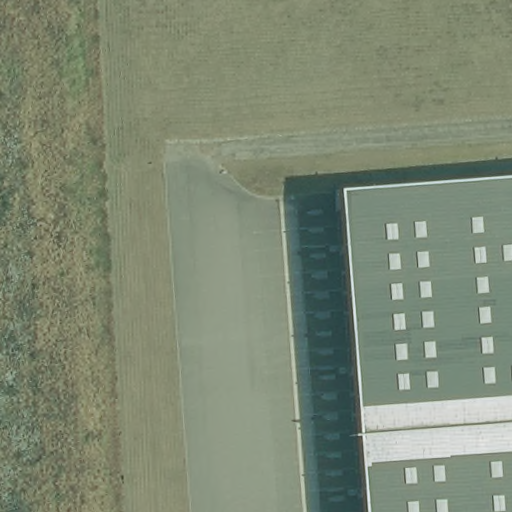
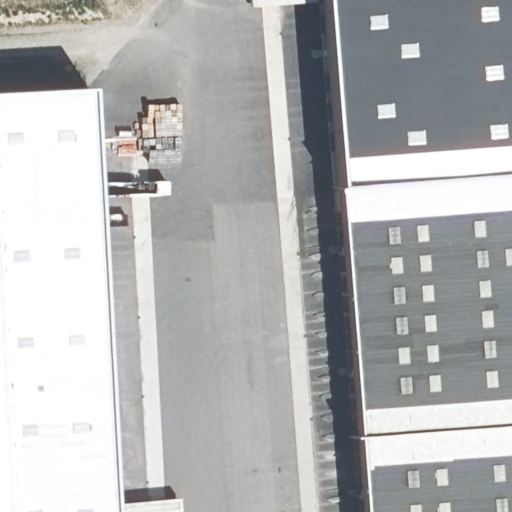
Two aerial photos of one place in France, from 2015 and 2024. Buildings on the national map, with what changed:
new [(251,8),(250,0),(305,0),(306,2),(251,8)]
new [(512,0),(512,177),(334,191),(317,0),(512,0)]
new [(85,86),(110,512),(0,512),(0,90),(85,86)]
unchanged [(334,191),(512,177),(512,512),(358,512),(334,191)]

